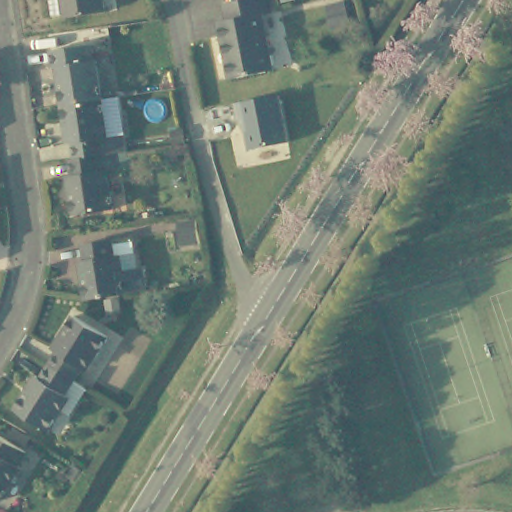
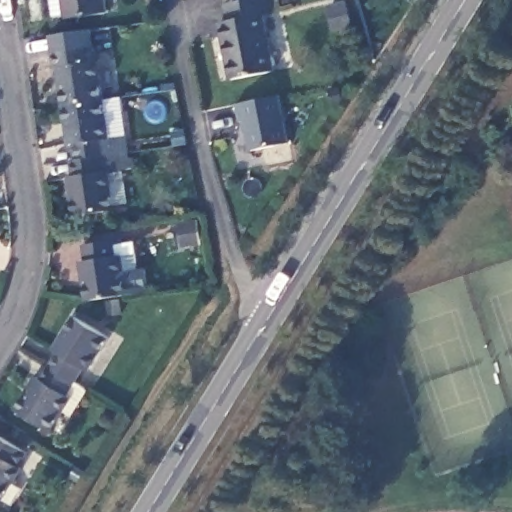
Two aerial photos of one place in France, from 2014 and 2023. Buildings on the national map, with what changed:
unchanged [(52,0),(106,0),(107,5),(67,11),(66,4),(53,5),(52,0)]
unchanged [(224,31),(220,17),(224,16),(227,15),(230,15),(227,0),(271,0),(272,9),(261,11),(271,65),(235,73),(231,74),(224,31)]
unchanged [(62,67),(59,68),(57,51),(95,46),(97,61),(100,61),(106,99),(67,105),(62,67)]
unchanged [(275,96),(286,145),(249,152),(245,130),(240,130),(235,104),(275,96)]
unchanged [(106,99),(112,137),(106,138),(109,153),(105,154),(79,157),(76,141),(72,142),(67,105),(106,99)]
unchanged [(79,157),(105,154),(107,169),(110,169),(116,208),(77,213),(71,173),(76,172),(74,158),(79,157)]
unchanged [(130,254),(130,240),(142,239),(144,252),(130,254)]
unchanged [(83,258),(89,257),(86,244),(115,240),(117,254),(121,254),(124,266),(144,264),(147,285),(88,293),(83,258)]
unchanged [(55,351),(50,347),(72,312),(106,334),(85,368),(81,365),(73,378),(49,362),(55,351)]
unchanged [(73,378),(65,392),(68,395),(48,429),(14,407),(35,373),(40,377),(49,362),(73,378)]
unchanged [(27,450),(19,465),(20,466),(0,500),(0,433),(27,450)]

